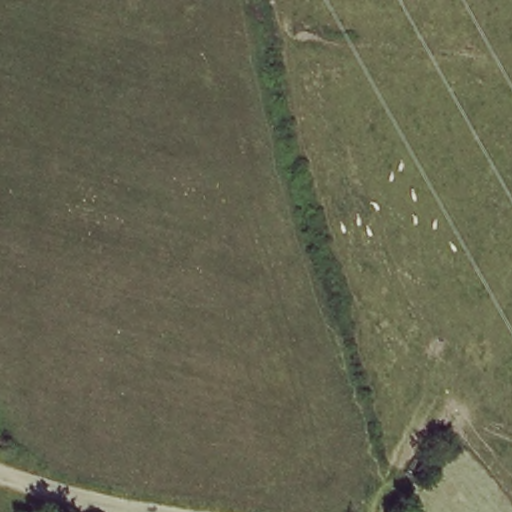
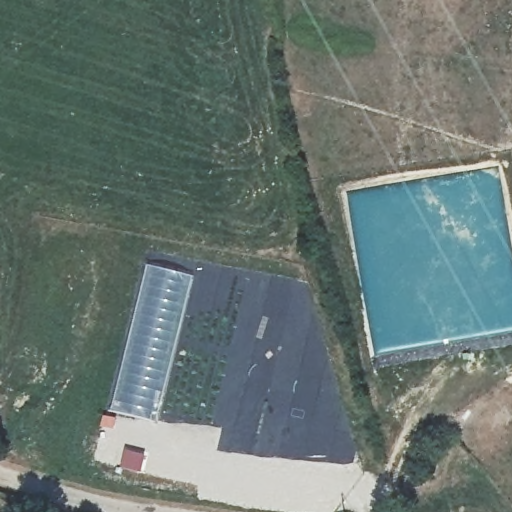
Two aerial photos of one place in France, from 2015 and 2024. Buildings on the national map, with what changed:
new [(145,264),(193,275),(157,422),(108,411),(145,264)]

